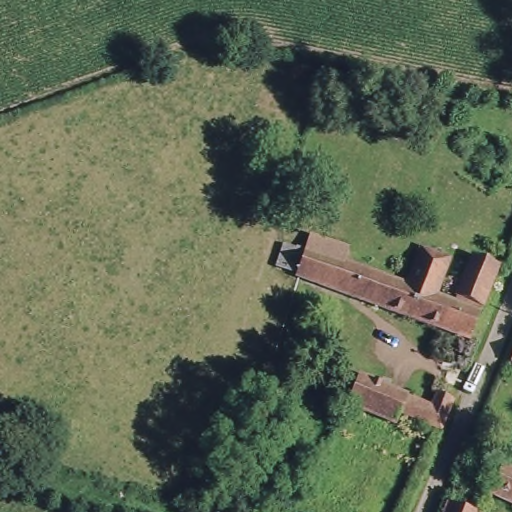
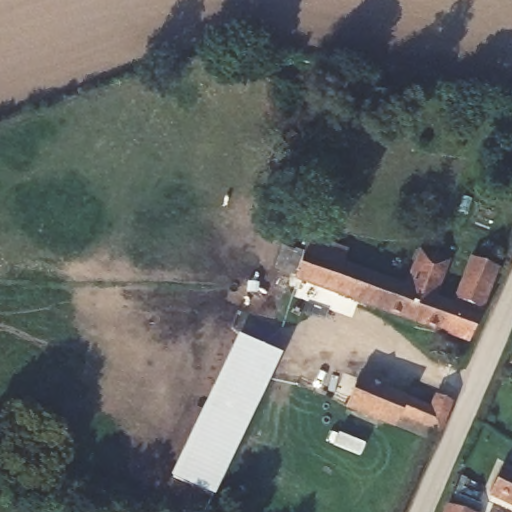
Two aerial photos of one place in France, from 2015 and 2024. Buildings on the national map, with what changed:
unchanged [(273,242),(323,260),(412,292),(420,270),(425,256),(452,266),(438,302),(458,309),(477,264),(500,272),(472,344),(265,269),(273,242)]
new [(237,335),(281,354),(213,496),(170,478),(237,335)]
unchanged [(512,358),(512,369),(507,367),(512,358)]
unchanged [(371,374),(445,406),(455,382),(468,388),(463,399),(451,427),(410,409),(407,419),(360,399),(371,374)]
unchanged [(494,496),(507,467),(512,469),(512,505),(494,496)]
unchanged [(458,490),(488,499),(484,512),(452,512),(458,490)]

